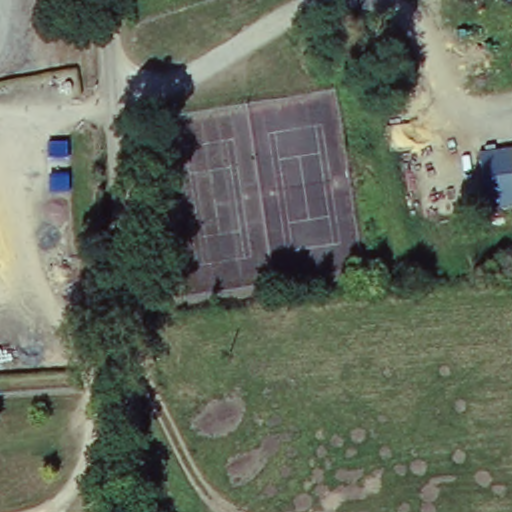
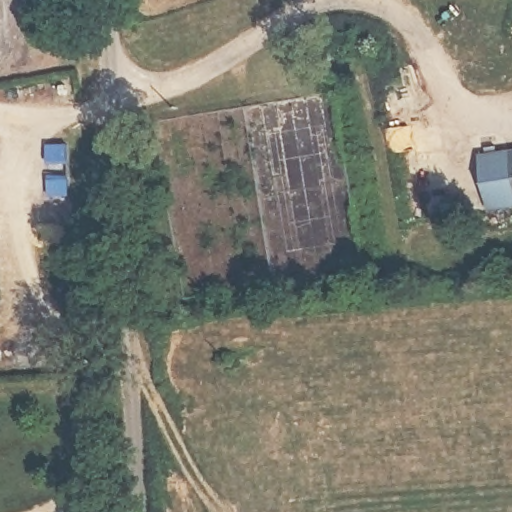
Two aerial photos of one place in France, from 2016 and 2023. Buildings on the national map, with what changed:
unchanged [(475,156),(512,149),(512,207),(485,212),(475,156)]

